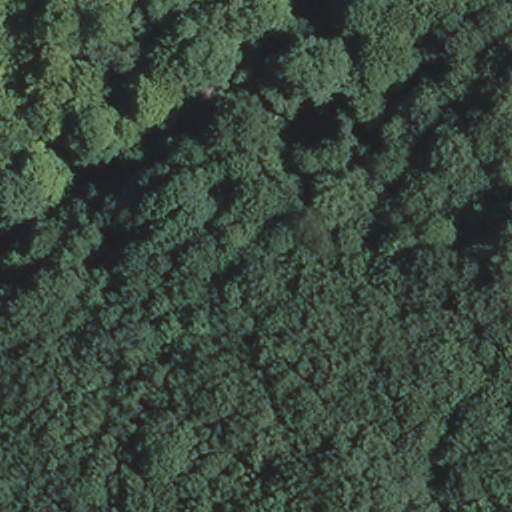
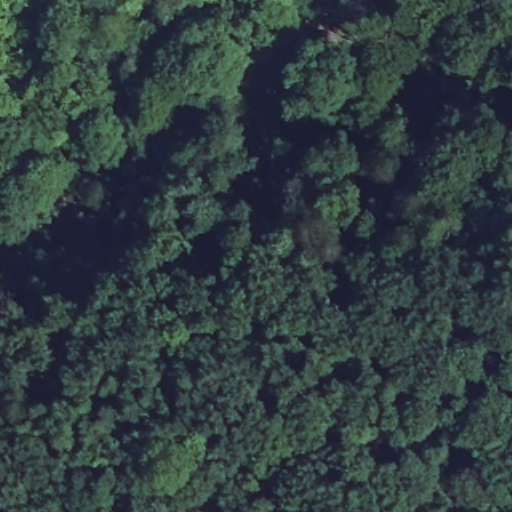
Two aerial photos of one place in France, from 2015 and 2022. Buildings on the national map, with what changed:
[]

